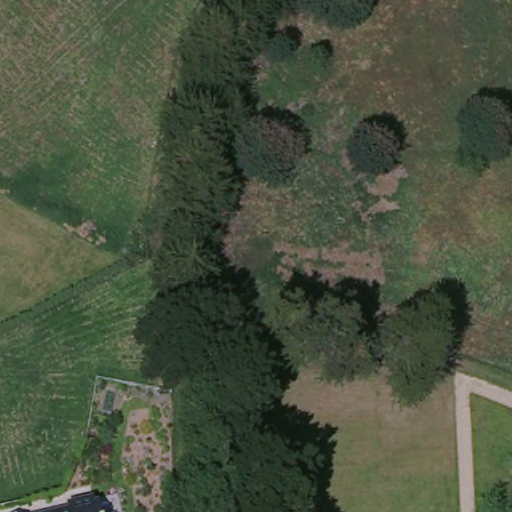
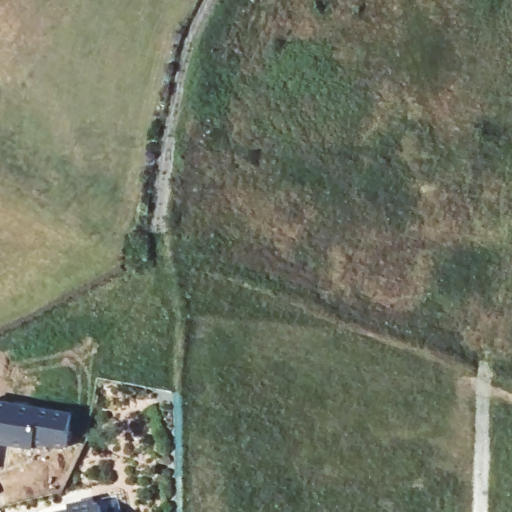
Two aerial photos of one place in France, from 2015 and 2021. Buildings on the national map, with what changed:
new [(70,416),(65,449),(34,444),(33,449),(0,445),(0,405),(70,416)]
unchanged [(67,505),(68,507),(93,500),(94,506),(98,505),(100,512),(41,512),(67,505)]

